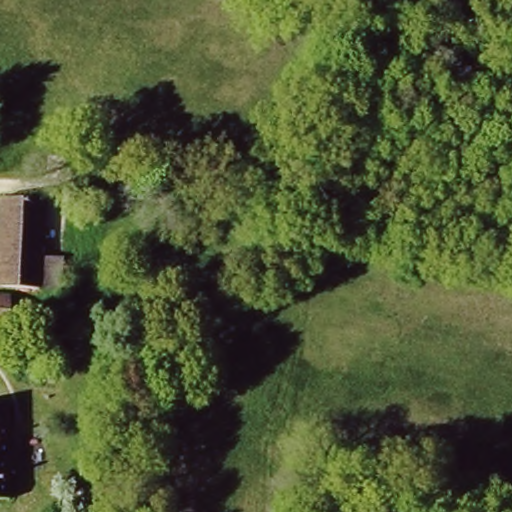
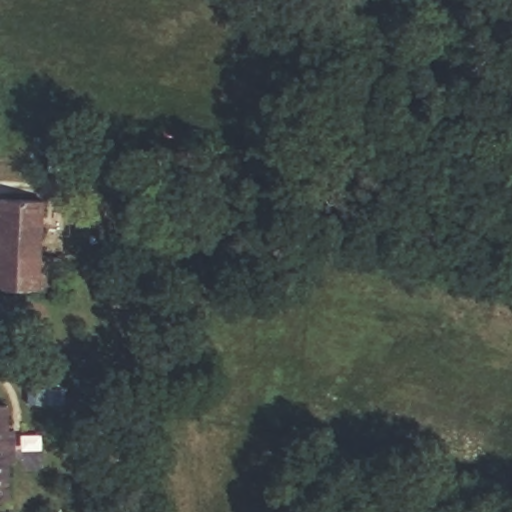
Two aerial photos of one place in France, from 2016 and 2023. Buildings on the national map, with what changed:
unchanged [(39,199),(37,238),(62,238),(62,290),(37,289),(36,324),(0,323),(0,196),(39,199)]
unchanged [(8,408),(9,505),(0,506),(0,409),(8,408)]

